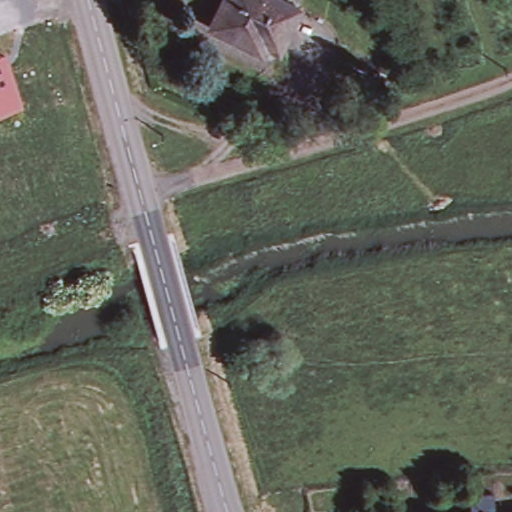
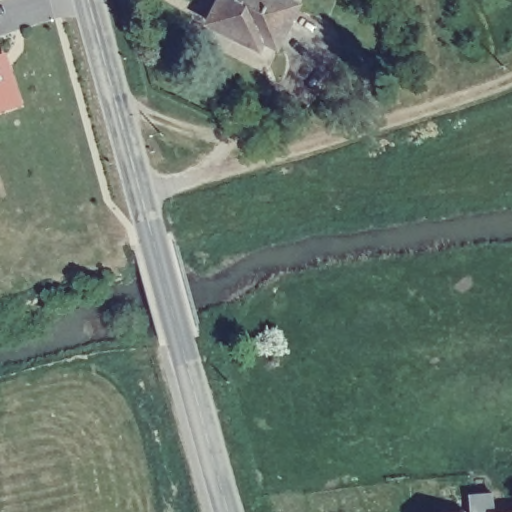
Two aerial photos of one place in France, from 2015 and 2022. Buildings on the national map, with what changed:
unchanged [(302,4),(280,42),(267,36),(261,46),(211,22),(224,0),(295,0),(302,4)]
unchanged [(0,56),(8,53),(23,107),(0,115),(0,56)]
unchanged [(491,500),(492,512),(468,512),(468,502),(491,500)]

